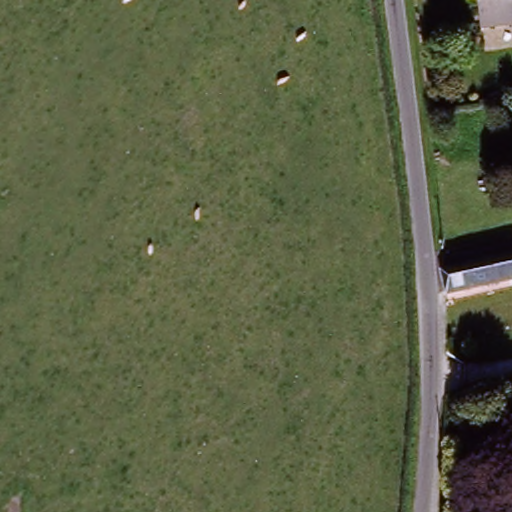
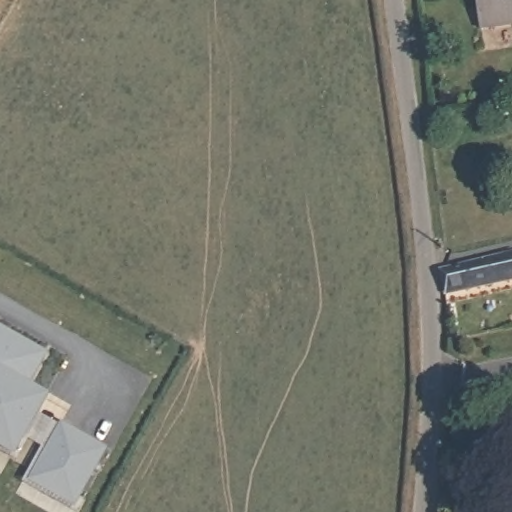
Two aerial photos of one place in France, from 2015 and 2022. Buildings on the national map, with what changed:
unchanged [(482,23),(478,0),(512,0),(512,18),(482,23)]
unchanged [(447,295),(443,272),(511,258),(512,257),(512,279),(447,295)]
new [(85,503),(79,512),(74,512),(23,484),(42,449),(30,442),(18,462),(0,452),(0,327),(50,354),(34,384),(52,395),(40,414),(60,427),(62,423),(109,449),(82,501),(85,503)]

